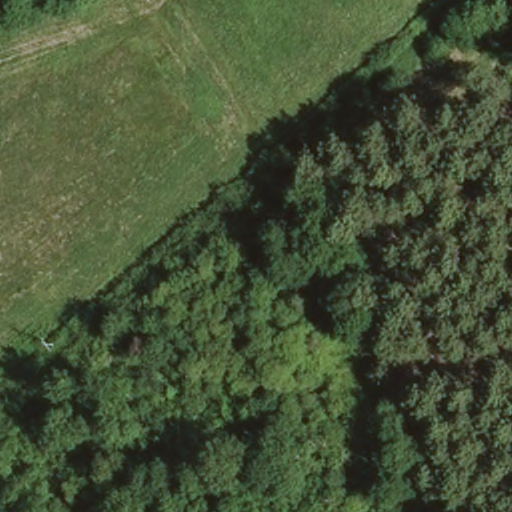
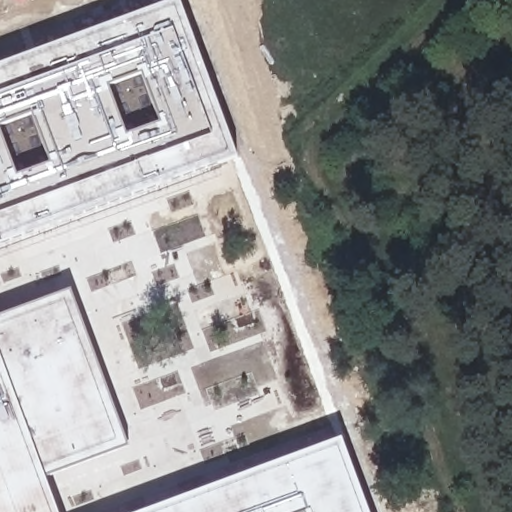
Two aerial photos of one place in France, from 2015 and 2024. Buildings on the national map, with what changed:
new [(0,246),(0,65),(175,0),(180,0),(237,155),(0,246)]
new [(71,288),(129,446),(47,477),(60,512),(0,512),(0,316),(71,288)]
new [(342,438),(370,512),(144,512),(342,438)]

